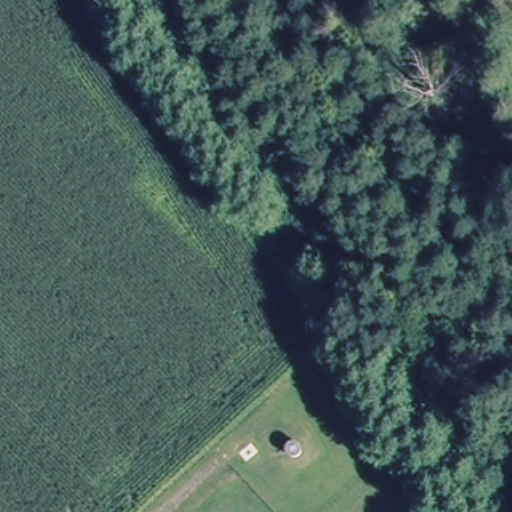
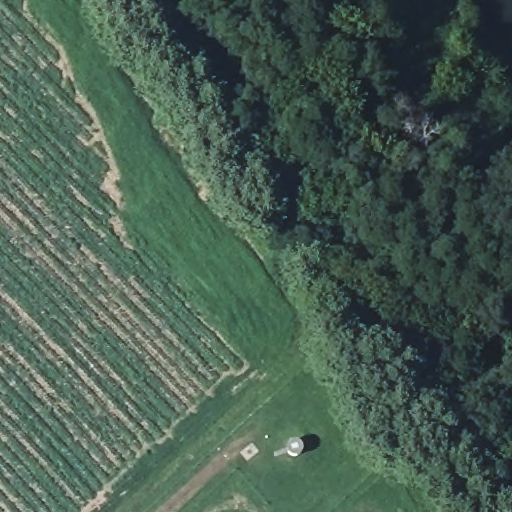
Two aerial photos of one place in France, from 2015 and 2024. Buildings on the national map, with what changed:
unchanged [(298,443),(299,443),(300,444),(300,445),(301,446),(301,447),(302,449),(302,450),(302,452),(300,455),(299,456),(297,457),(297,458),(295,458),(294,458),(292,458),(291,458),(290,457),(289,456),(288,455),(287,454),(287,453),(286,452),(286,451),(286,450),(286,448),(287,447),(288,445),(288,444),(290,443),(292,442),(293,442),(294,442),(295,442),(296,442),(298,443)]

